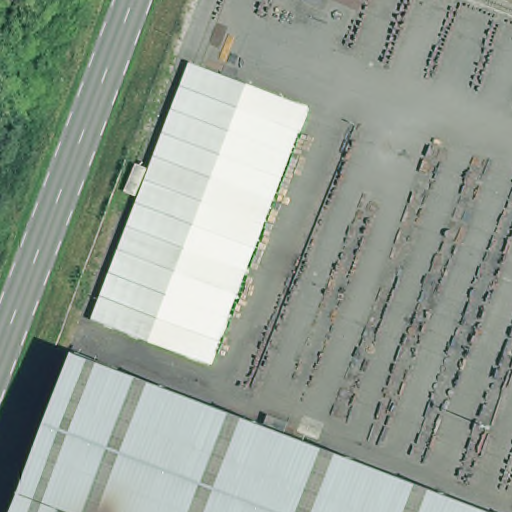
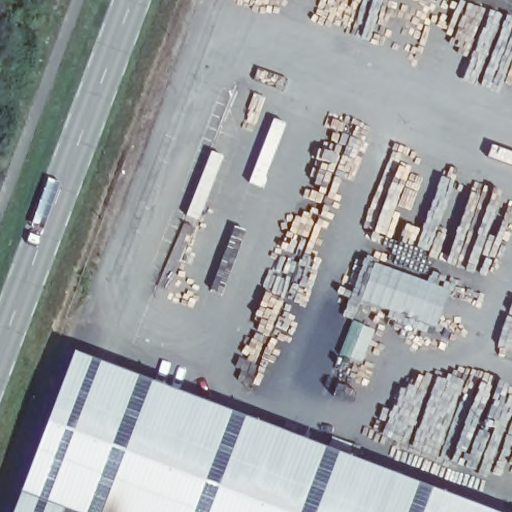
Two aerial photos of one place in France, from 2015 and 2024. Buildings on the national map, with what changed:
demolished [(212,364),(90,318),(137,199),(124,192),(137,164),(149,168),(187,60),(310,108),(212,364)]
new [(449,291),(435,328),(361,300),(375,263),(449,291)]
unchanged [(14,512),(75,353),(120,369),(64,512),(14,512)]
unchanged [(126,372),(74,508),(73,512),(64,512),(120,369),(126,372)]
unchanged [(126,372),(489,512),(83,512),(74,508),(126,372)]
unchanged [(83,512),(73,512),(74,508),(83,512)]

